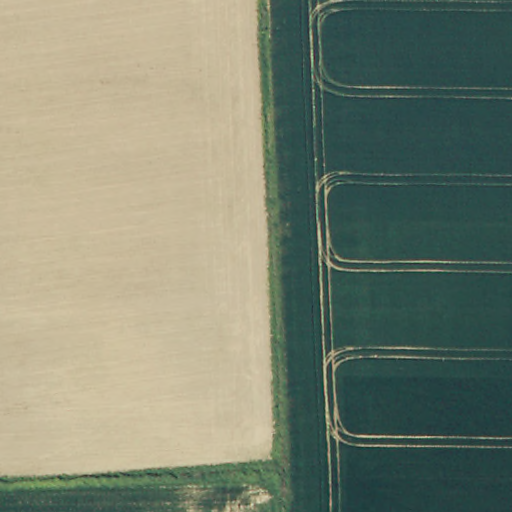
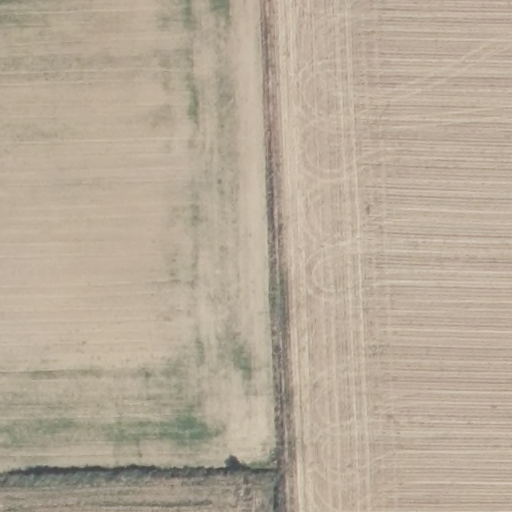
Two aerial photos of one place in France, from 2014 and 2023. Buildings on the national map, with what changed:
[]

